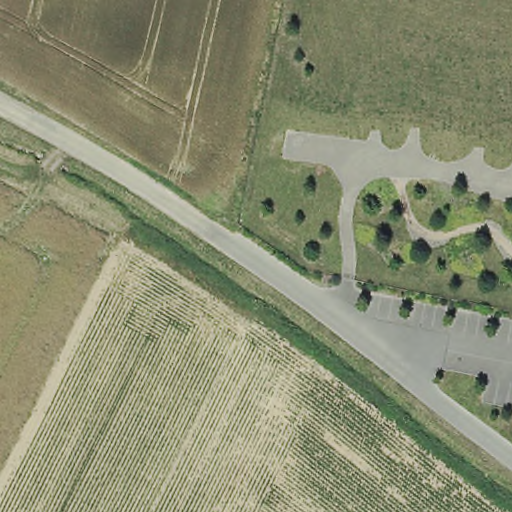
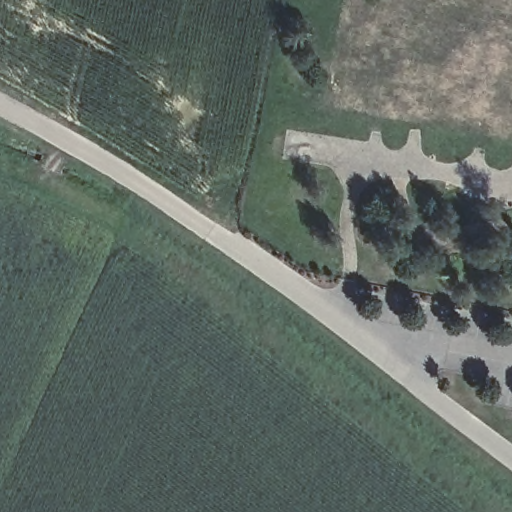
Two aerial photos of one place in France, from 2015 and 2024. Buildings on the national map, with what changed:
[]

